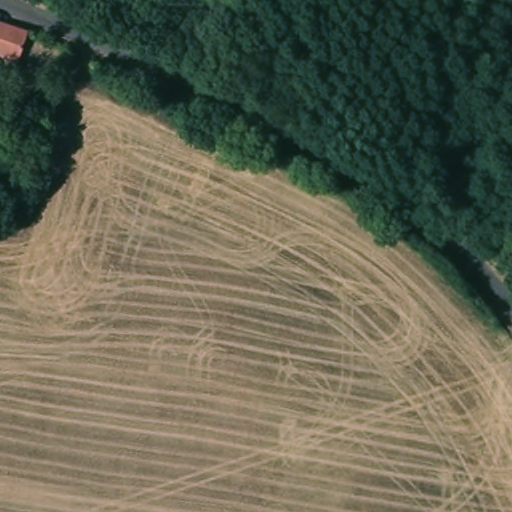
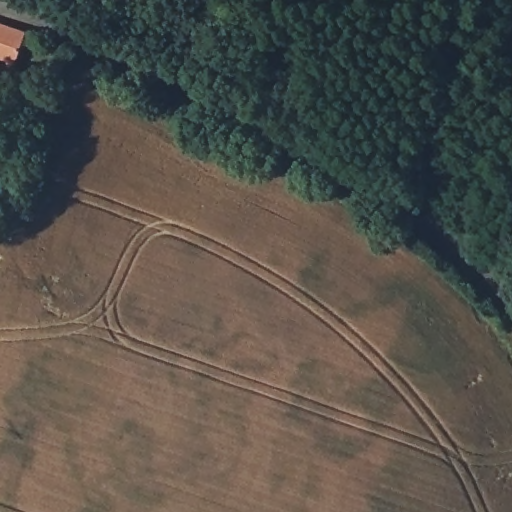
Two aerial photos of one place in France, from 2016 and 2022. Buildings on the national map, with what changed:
unchanged [(4,61),(0,69),(0,23),(15,27),(30,33),(20,65),(4,61)]

